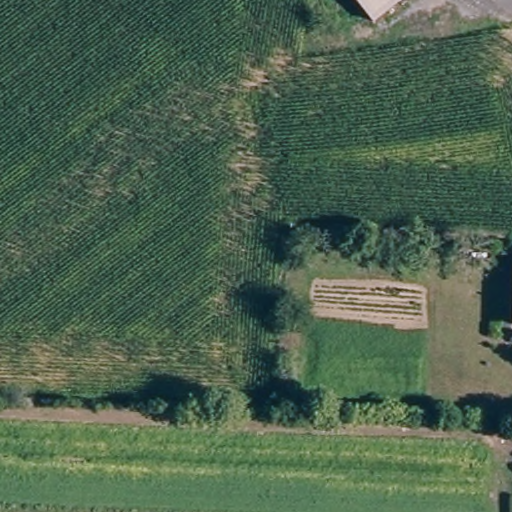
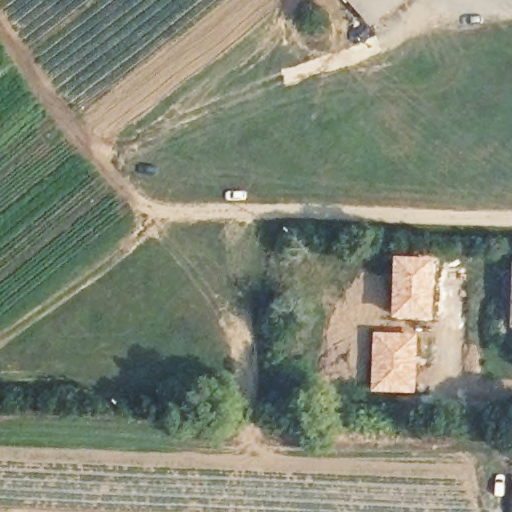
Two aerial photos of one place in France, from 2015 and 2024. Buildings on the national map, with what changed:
unchanged [(365,30),(341,0),(399,0),(365,30)]
new [(395,258),(436,260),(433,321),(392,320),(395,258)]
new [(373,333),(417,334),(415,394),(372,393),(373,333)]

